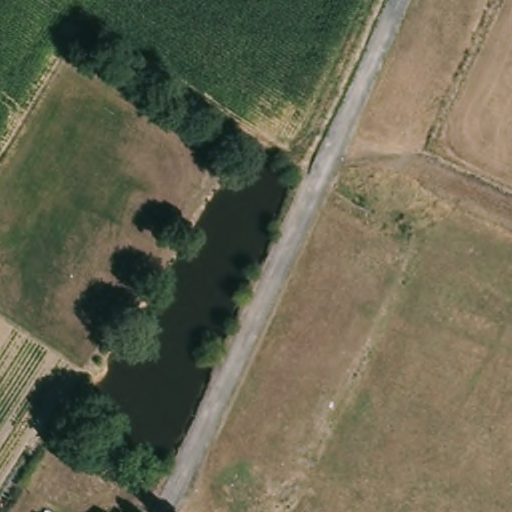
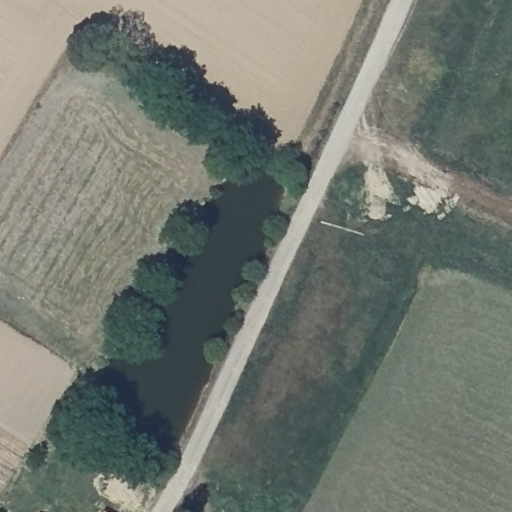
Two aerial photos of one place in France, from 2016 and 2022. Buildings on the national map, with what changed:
unchanged [(40,512),(49,495),(77,512),(40,512)]
unchanged [(109,512),(95,512),(98,506),(109,512)]

